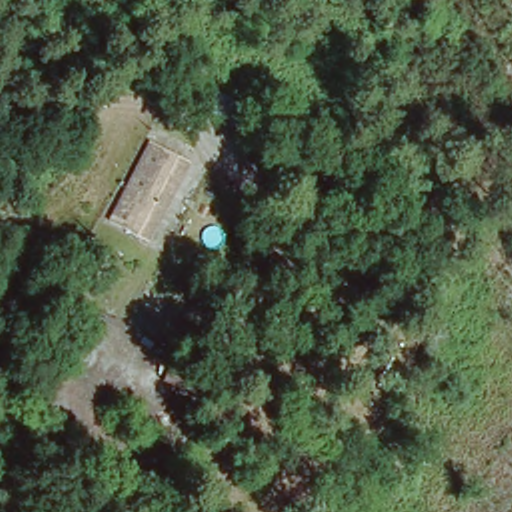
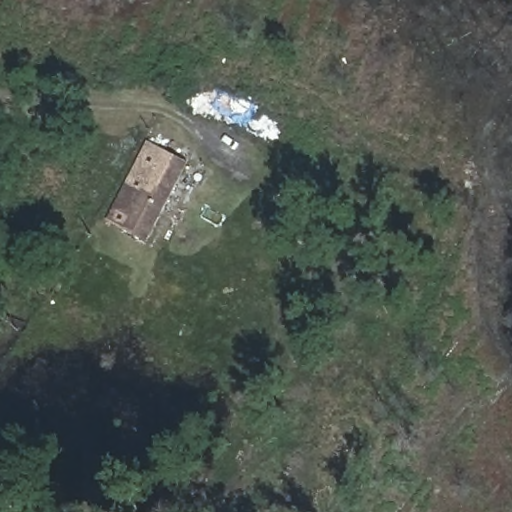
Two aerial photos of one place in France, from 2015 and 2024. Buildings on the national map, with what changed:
unchanged [(136,192),(128,187),(150,141),(187,159),(156,225),(129,210),(136,192)]
unchanged [(156,225),(149,242),(111,225),(128,187),(136,192),(129,210),(156,225)]

